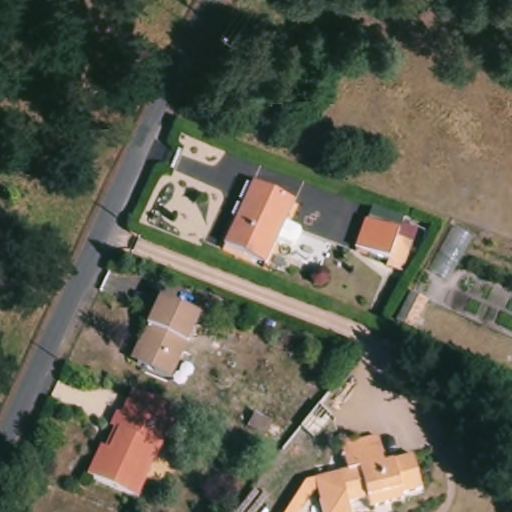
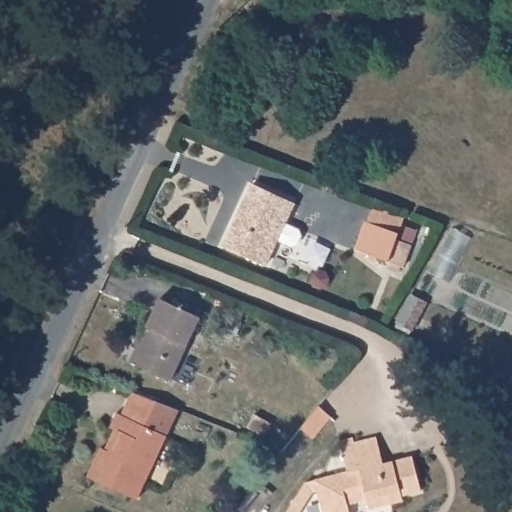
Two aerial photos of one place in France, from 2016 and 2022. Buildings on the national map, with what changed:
unchanged [(252,185),(292,204),(263,265),(224,246),(252,185)]
unchanged [(364,223),(397,235),(386,262),(354,250),(364,223)]
unchanged [(146,333),(159,304),(199,322),(169,385),(137,370),(130,367),(146,333)]
unchanged [(167,436),(137,500),(87,478),(101,447),(104,449),(114,429),(110,427),(117,413),(121,415),(131,392),(176,410),(165,435),(167,436)]
unchanged [(355,512),(328,512),(319,474),(343,469),(352,467),(348,451),(384,442),(388,458),(418,451),(427,488),(407,493),(407,498),(375,507),(371,497),(352,502),(355,512)]

